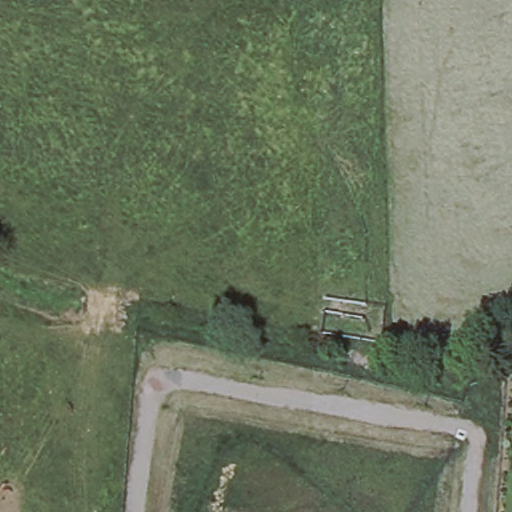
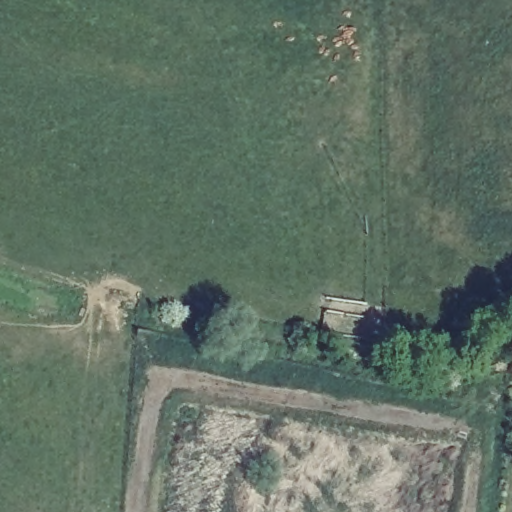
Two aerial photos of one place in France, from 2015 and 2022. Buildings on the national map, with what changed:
[]

